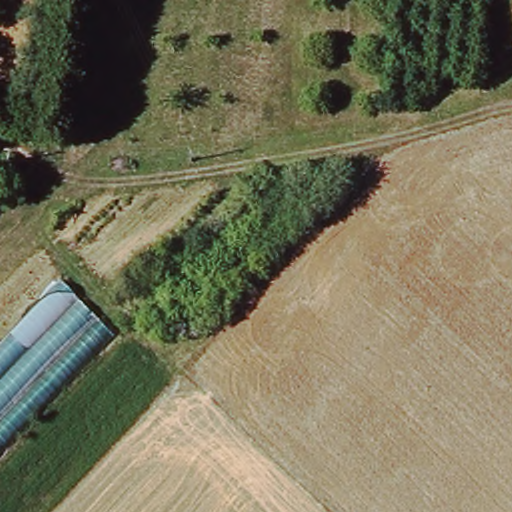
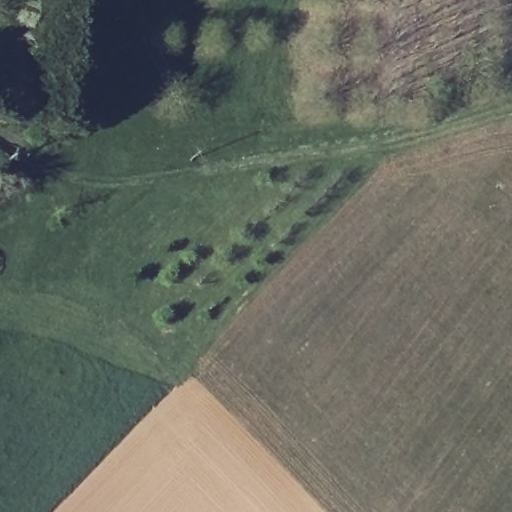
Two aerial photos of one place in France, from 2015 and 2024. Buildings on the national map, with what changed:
demolished [(0,455),(0,341),(60,278),(118,335),(0,455)]

